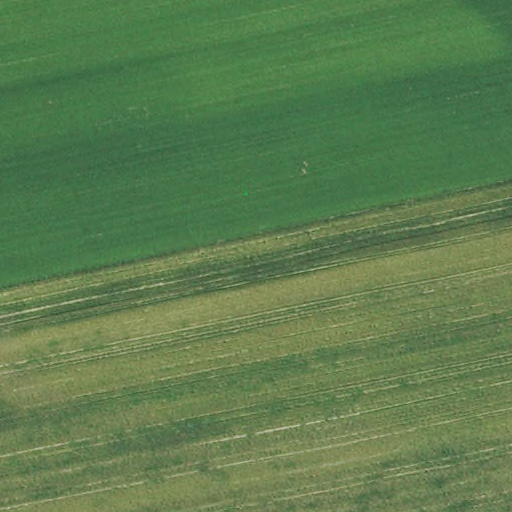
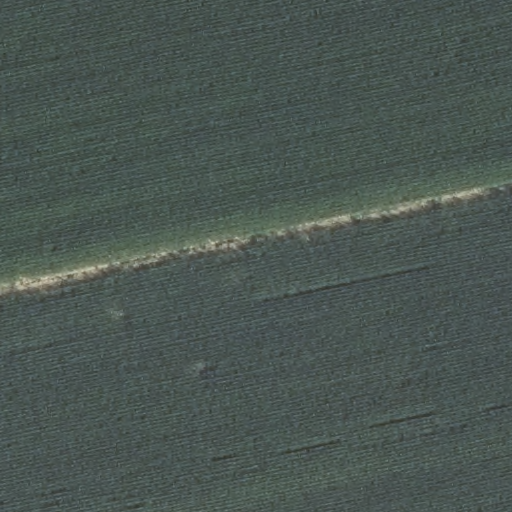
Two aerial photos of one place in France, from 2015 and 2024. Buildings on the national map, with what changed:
[]

